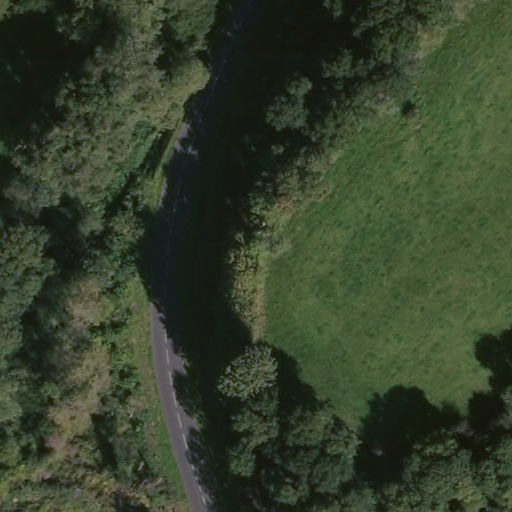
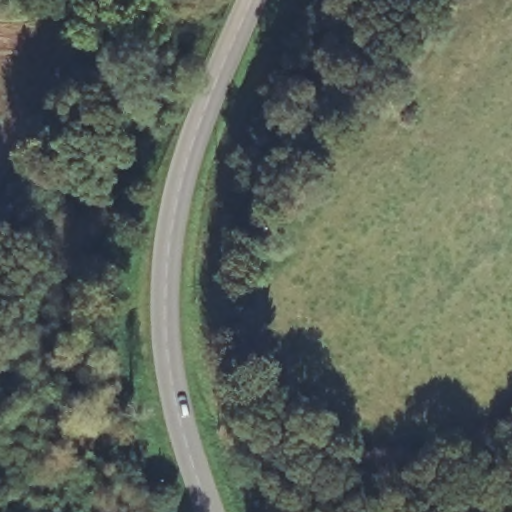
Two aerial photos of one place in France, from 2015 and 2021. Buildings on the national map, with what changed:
[]

